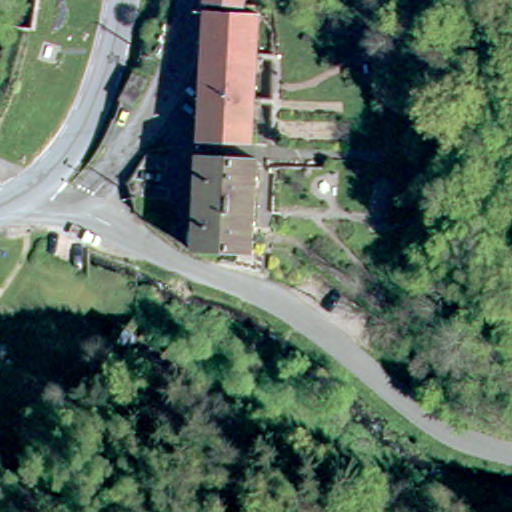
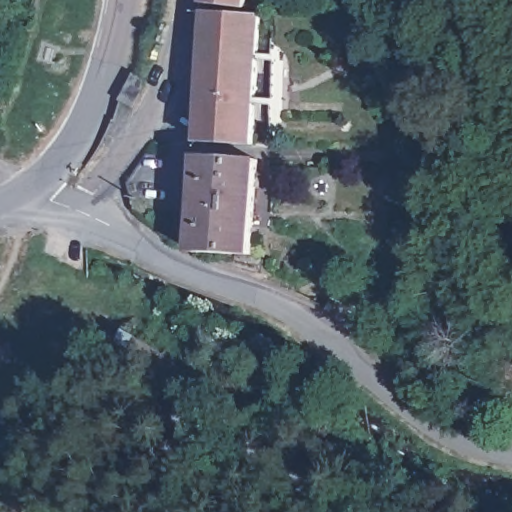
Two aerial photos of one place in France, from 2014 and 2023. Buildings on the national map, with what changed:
unchanged [(209,7),(210,0),(248,0),(247,11),(209,7)]
unchanged [(209,16),(262,19),(257,148),(201,146),(208,21),(209,16)]
unchanged [(275,150),(314,150),(333,150),(333,160),(314,161),(275,161),(275,150)]
unchanged [(259,257),(204,255),(201,161),(258,160),(259,257)]
unchanged [(152,166),(165,161),(166,188),(153,189),(152,166)]

